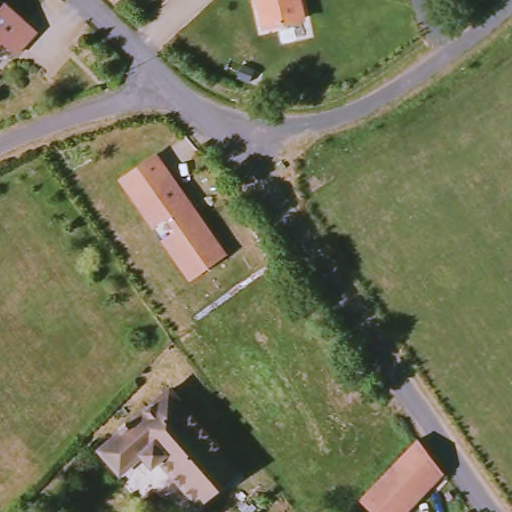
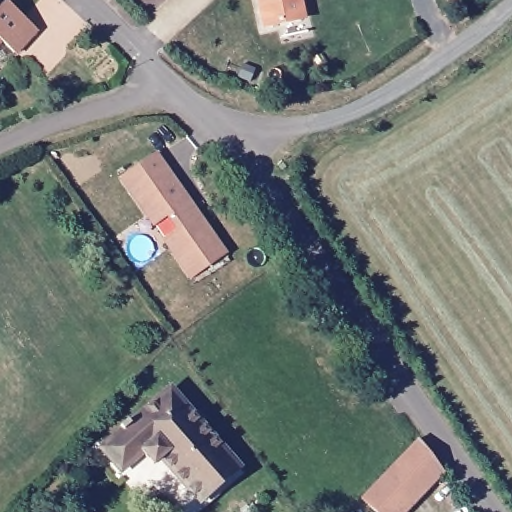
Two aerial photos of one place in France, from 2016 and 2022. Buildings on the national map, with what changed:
unchanged [(304,19),(265,27),(259,0),(299,0),(304,19)]
unchanged [(6,2),(37,31),(15,55),(1,41),(0,42),(0,8),(6,2)]
unchanged [(177,230),(169,217),(155,227),(121,179),(155,155),(227,256),(192,279),(164,239),(177,230)]
unchanged [(162,458),(154,466),(142,453),(122,472),(102,450),(170,390),(239,468),(200,502),(162,458)]
unchanged [(419,441),(444,472),(407,512),(375,512),(362,500),(419,441)]

